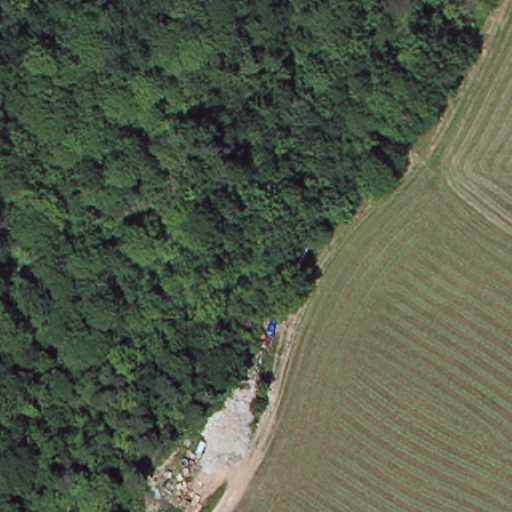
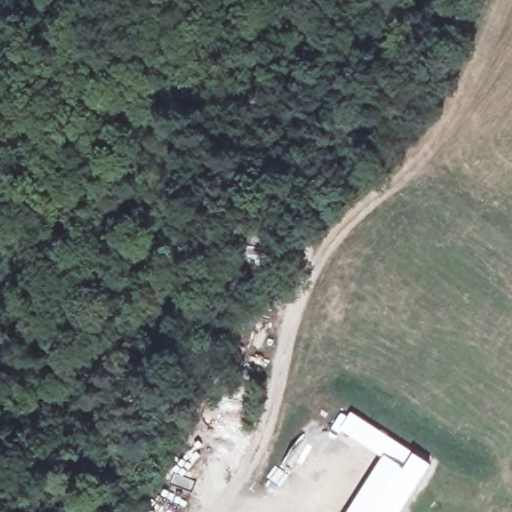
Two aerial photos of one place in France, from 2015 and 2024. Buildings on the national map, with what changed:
new [(353,500),(382,457),(337,430),(351,410),(433,464),(401,512),(346,512),(353,500)]

